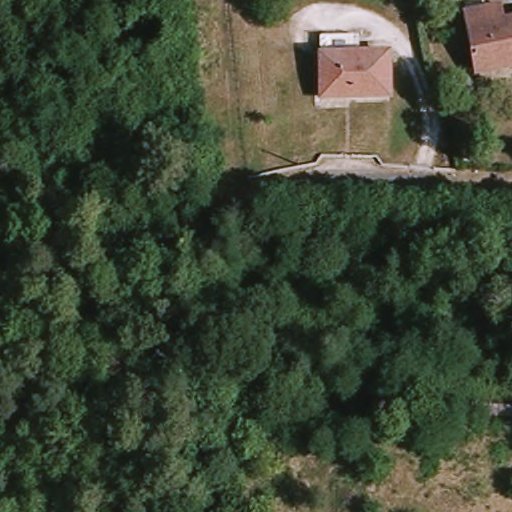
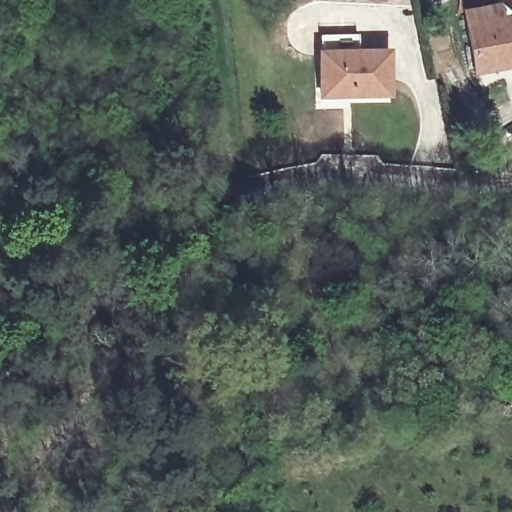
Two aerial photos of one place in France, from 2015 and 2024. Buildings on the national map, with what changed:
unchanged [(468,29),(512,20),(512,70),(477,78),(475,70),(468,29)]
unchanged [(320,104),(319,59),(319,41),(356,41),(356,59),(388,59),(389,104),(320,104)]

